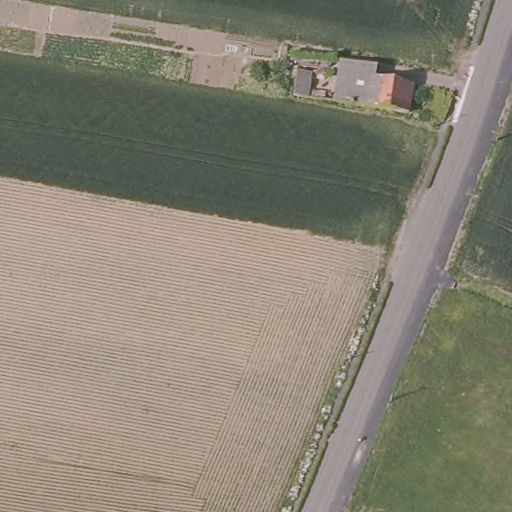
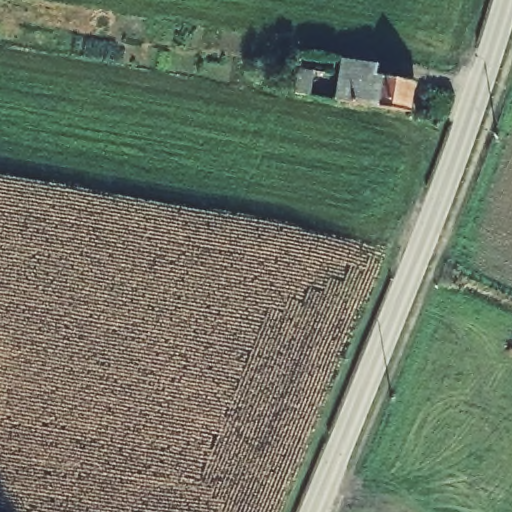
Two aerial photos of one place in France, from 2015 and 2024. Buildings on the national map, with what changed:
unchanged [(367,84),(405,91),(400,124),(326,112),(332,66),(368,71),(367,84)]

